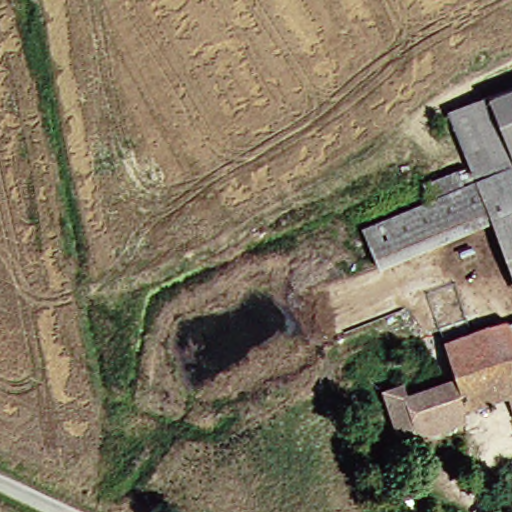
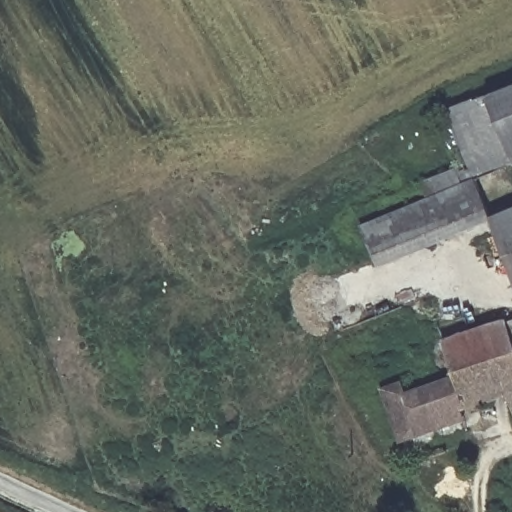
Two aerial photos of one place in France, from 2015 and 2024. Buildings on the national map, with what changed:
unchanged [(447,103),(512,76),(512,160),(435,195),(425,178),(470,158),(447,103)]
unchanged [(383,262),(367,225),(435,195),(512,160),(512,248),(495,213),(383,262)]
unchanged [(442,333),(512,309),(512,329),(508,330),(512,337),(512,408),(504,388),(467,401),(453,371),(442,333)]
unchanged [(413,419),(403,391),(437,377),(453,371),(467,401),(413,419)]
unchanged [(398,379),(403,391),(413,419),(391,427),(375,387),(398,379)]

